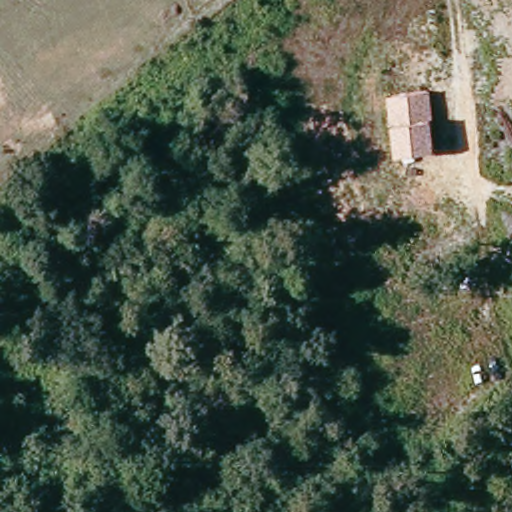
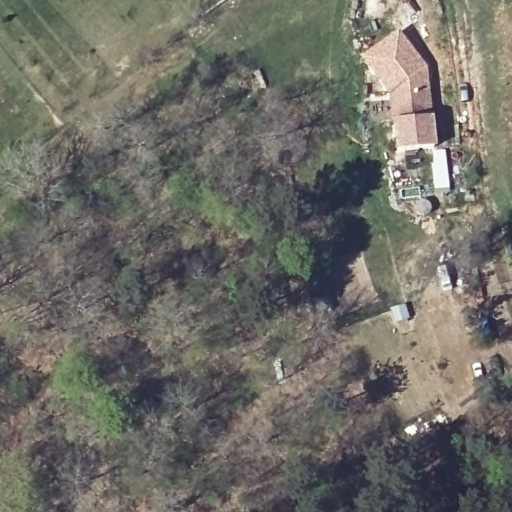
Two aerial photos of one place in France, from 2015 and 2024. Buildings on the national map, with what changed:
new [(428,87),(390,91),(361,57),(397,30),(424,64),(428,87)]
unchanged [(390,91),(428,87),(432,116),(436,147),(397,152),(394,120),(390,91)]

